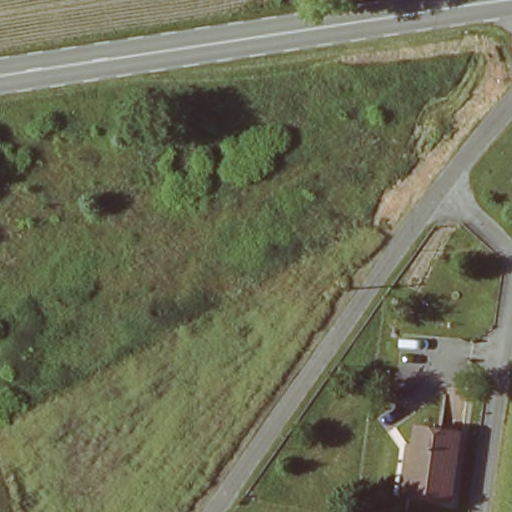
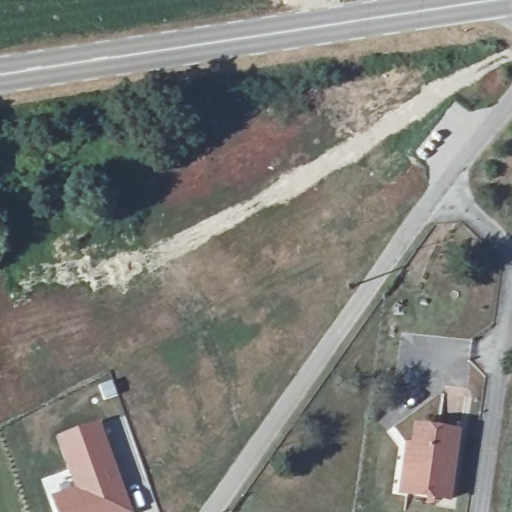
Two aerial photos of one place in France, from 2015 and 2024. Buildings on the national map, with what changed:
new [(67,482),(55,435),(100,419),(133,512),(54,512),(46,491),(67,482)]
unchanged [(462,429),(451,499),(405,491),(417,421),(462,429)]

